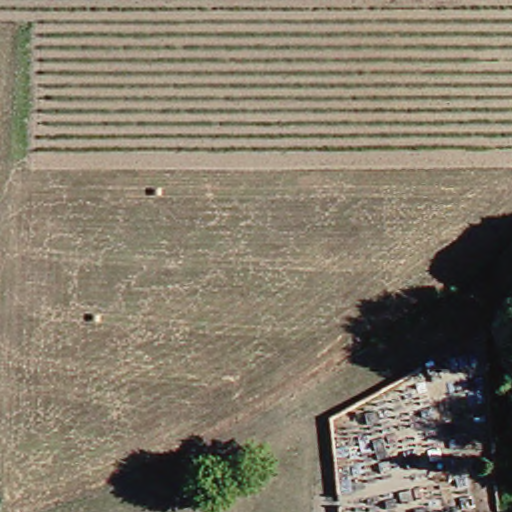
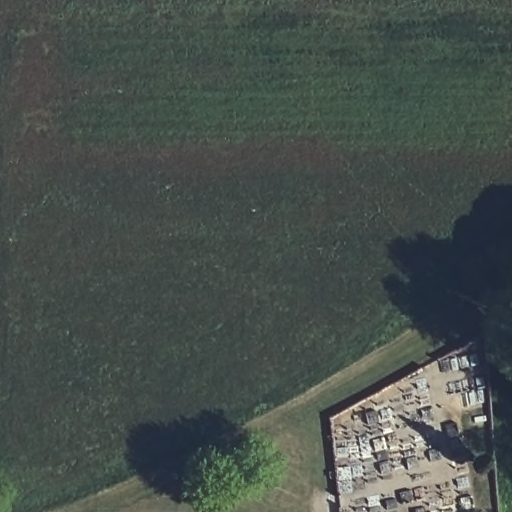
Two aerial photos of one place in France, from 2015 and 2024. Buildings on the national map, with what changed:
[]

